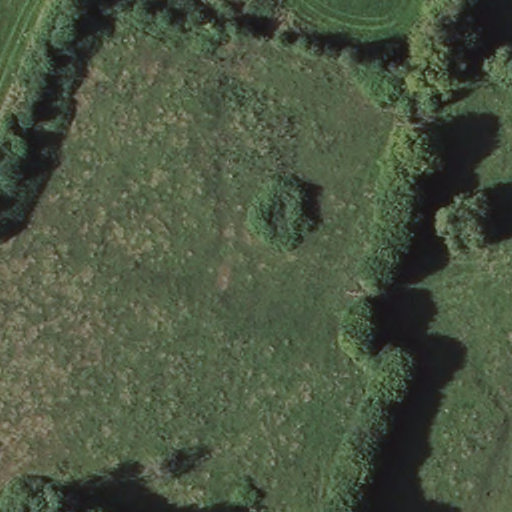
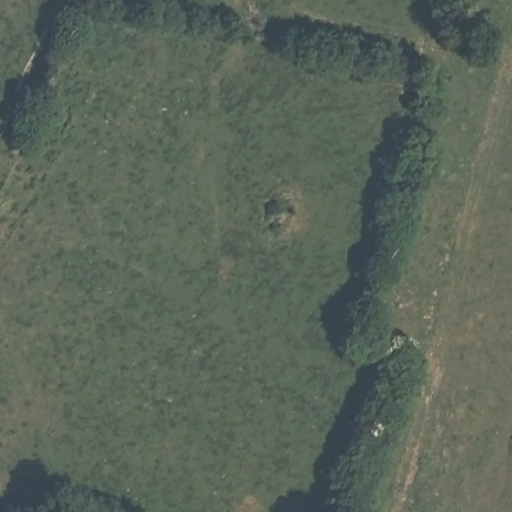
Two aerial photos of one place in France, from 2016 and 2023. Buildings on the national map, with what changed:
[]

